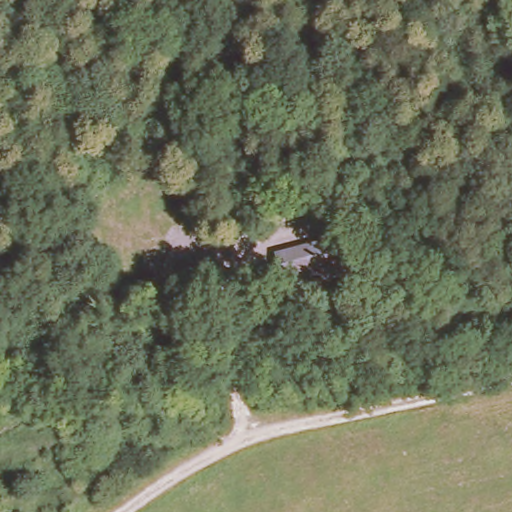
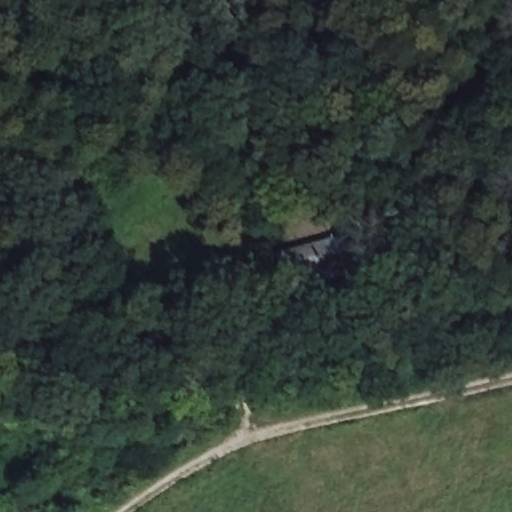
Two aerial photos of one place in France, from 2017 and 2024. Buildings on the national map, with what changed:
unchanged [(291,288),(290,288),(280,261),(277,250),(328,235),(331,245),(341,272),(291,288)]

